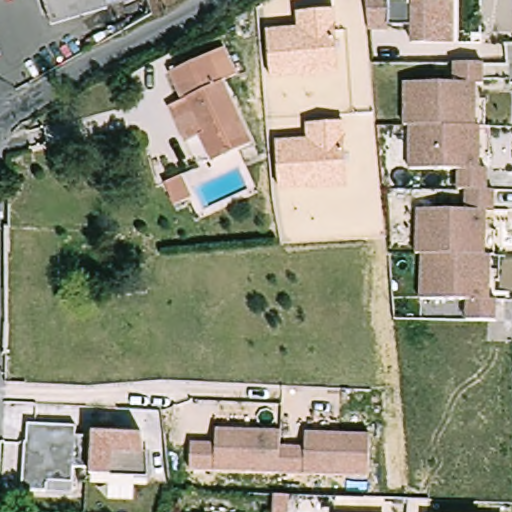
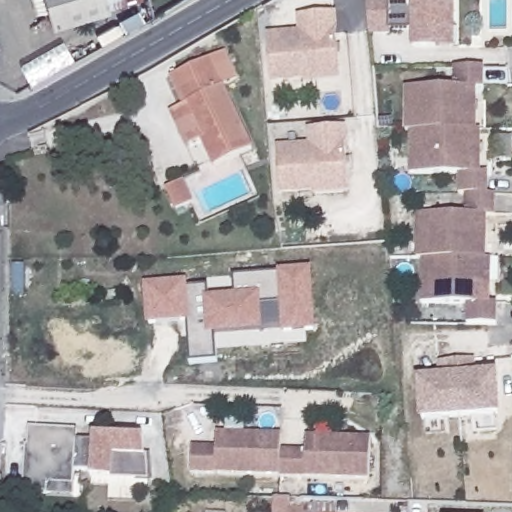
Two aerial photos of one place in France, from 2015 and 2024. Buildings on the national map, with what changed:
unchanged [(46,0),(146,0),(54,29),(46,0)]
unchanged [(416,45),(416,30),(393,29),(393,31),(372,31),(369,0),(456,0),(456,30),(456,45),(445,45),(416,45)]
unchanged [(297,17),(336,14),(337,80),(273,83),(267,34),(298,32),(297,17)]
unchanged [(171,115),(185,107),(172,80),(225,54),(239,80),(225,87),(256,150),(216,169),(203,142),(188,150),(171,115)]
unchanged [(480,131),(412,130),(407,130),(407,86),(457,87),(456,67),(457,67),(487,67),(487,89),(480,89),(480,131)]
unchanged [(306,129),(347,126),(346,190),(280,193),(277,146),(307,145),(306,129)]
unchanged [(483,172),(491,173),(491,195),(480,195),(468,195),(460,195),(460,175),(412,174),(412,130),(480,131),(485,131),(483,172)]
unchanged [(181,183),(192,205),(176,213),(165,191),(181,183)]
unchanged [(488,260),(468,259),(424,258),(418,258),(420,213),(467,214),(468,195),(480,195),(491,195),(498,195),(498,216),(490,216),(488,260)]
unchanged [(495,260),(493,304),(500,304),(500,325),(492,325),(468,324),(468,304),(423,303),(424,258),(468,259),(488,260),(495,260)]
new [(187,280),(188,286),(208,285),(209,296),(235,295),(233,276),(278,273),(278,270),(312,267),(315,332),(283,335),(282,331),(263,332),(214,335),(216,361),(190,363),(187,322),(146,325),(144,283),(187,280)]
new [(445,378),(443,361),(475,360),(476,376),(498,375),(501,413),(425,418),(422,380),(445,378)]
unchanged [(50,493),(25,491),(27,443),(30,443),(31,425),(80,428),(78,438),(95,439),(96,434),(145,437),(147,457),(153,457),(155,482),(140,481),(93,478),(93,471),(76,470),(75,485),(75,495),(50,493)]
unchanged [(371,438),(370,480),(191,474),(192,447),(209,447),(216,448),(217,433),(282,435),(281,450),(298,451),(306,451),(306,436),(371,438)]
unchanged [(289,512),(273,512),(274,497),(290,497),(289,512)]

